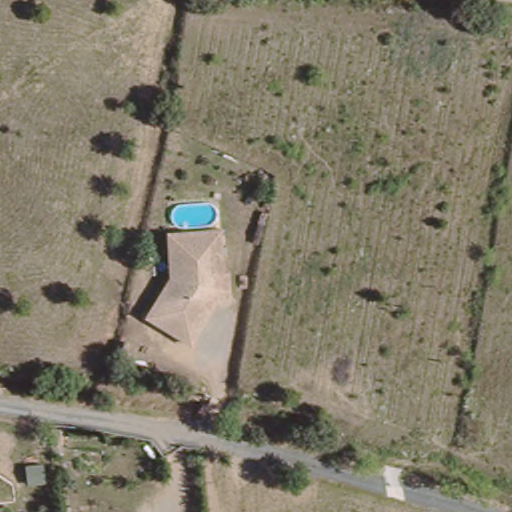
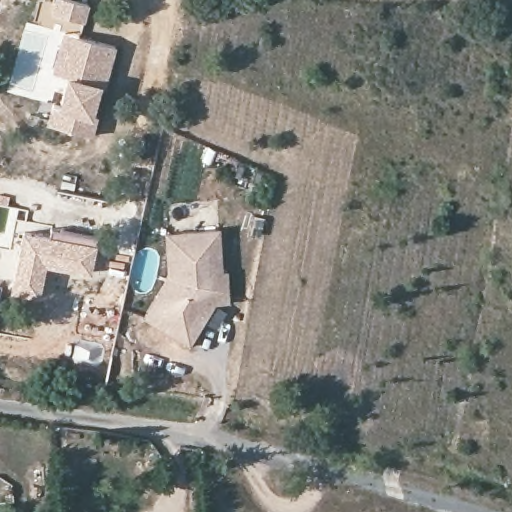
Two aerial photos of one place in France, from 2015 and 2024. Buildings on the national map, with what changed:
new [(117,46),(107,84),(102,82),(93,114),(99,115),(94,135),(47,122),(53,102),(59,105),(68,75),(52,71),(64,32),(117,46)]
unchanged [(178,280),(178,226),(218,223),(221,269),(228,269),(227,298),(213,299),(198,344),(162,334),(178,280)]
unchanged [(162,334),(144,329),(163,276),(162,227),(178,226),(178,280),(162,334)]
new [(22,229),(50,232),(51,227),(98,237),(91,274),(47,265),(40,295),(8,289),(22,229)]

